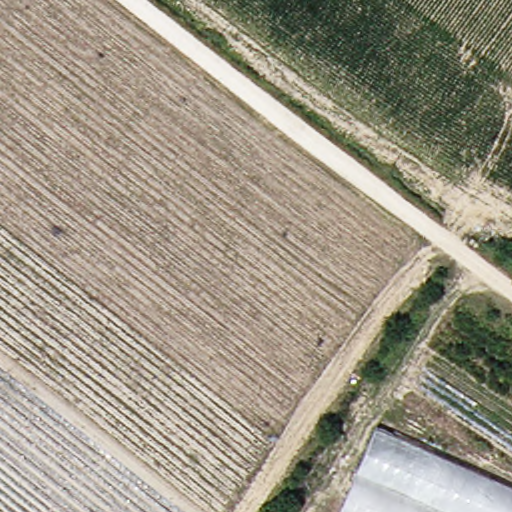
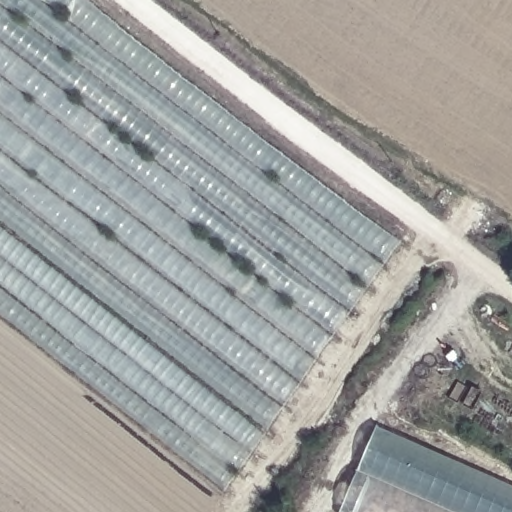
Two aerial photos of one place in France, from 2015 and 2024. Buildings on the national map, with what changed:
new [(401,244),(225,490),(0,314),(0,0),(94,0),(401,244)]
unchanged [(512,485),(512,512),(339,512),(376,425),(512,485)]

